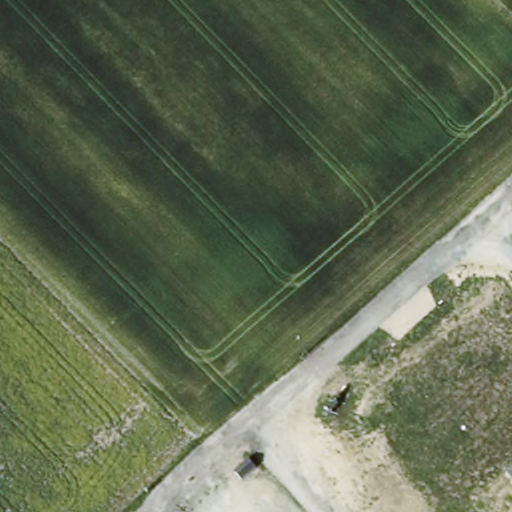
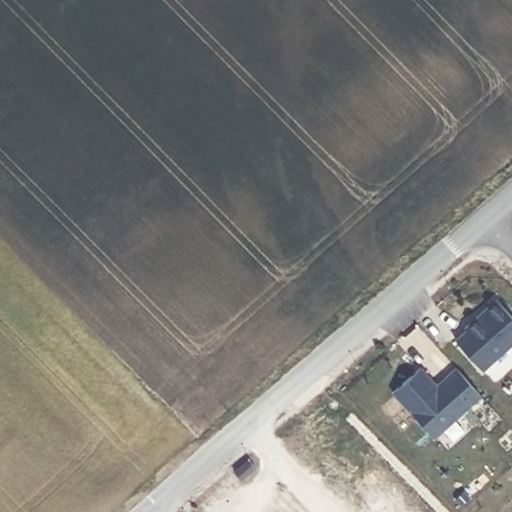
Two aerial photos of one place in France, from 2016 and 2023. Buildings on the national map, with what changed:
new [(465,330),(464,328),(496,300),(512,318),(512,343),(481,370),(454,340),(465,330)]
new [(419,368),(435,388),(456,369),(479,395),(432,437),(392,392),(419,368)]
unchanged [(253,468),(240,481),(233,475),(247,462),(253,468)]

